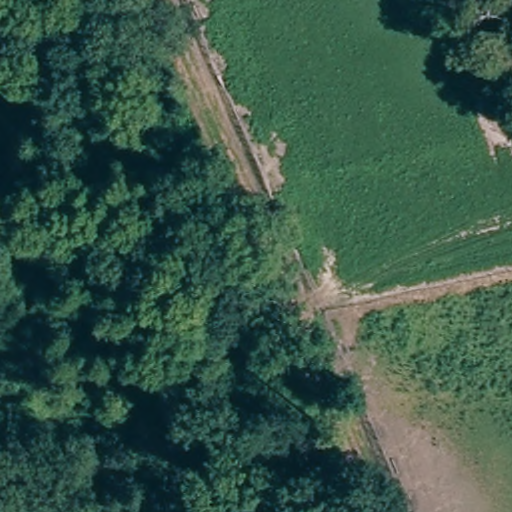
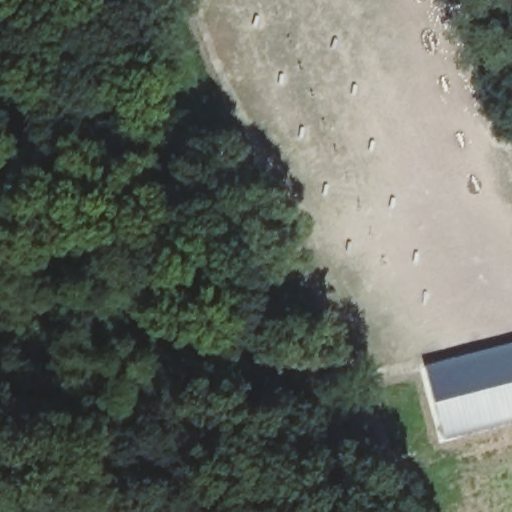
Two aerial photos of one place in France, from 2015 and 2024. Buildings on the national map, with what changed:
new [(512,342),(512,419),(441,438),(423,365),(512,342)]

